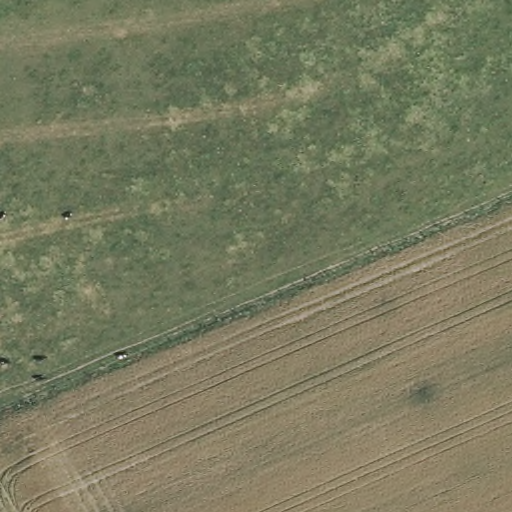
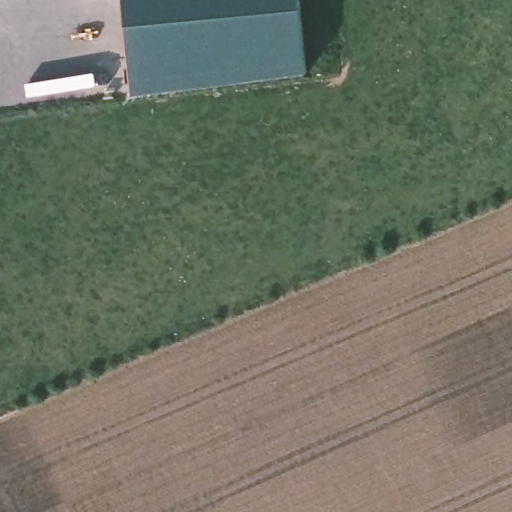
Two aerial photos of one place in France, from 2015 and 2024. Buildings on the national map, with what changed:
new [(126,0),(300,0),(307,74),(134,95),(126,0)]

